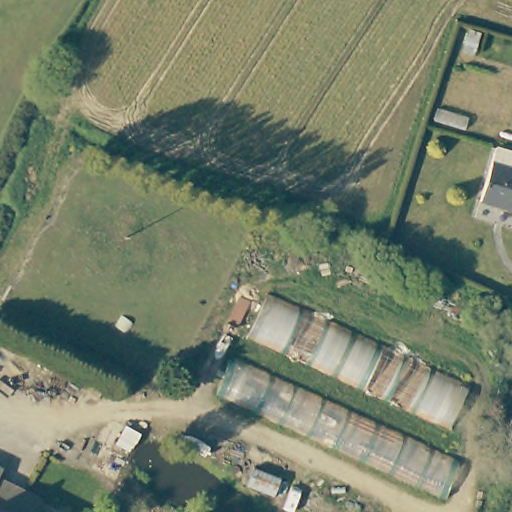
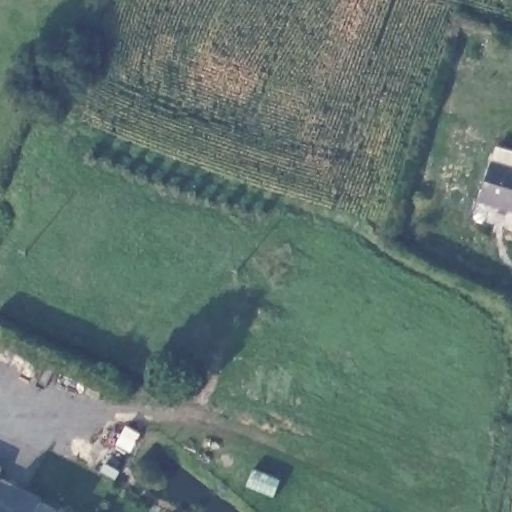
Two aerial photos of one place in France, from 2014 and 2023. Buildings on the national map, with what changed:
unchanged [(479,203),(490,165),(512,172),(512,213),(479,203)]
demolished [(211,402),(261,300),(465,398),(437,456),(460,468),(441,511),(211,402)]
unchanged [(0,475),(0,473),(1,474),(0,475)]
unchanged [(0,507),(11,512),(0,512),(0,507)]

